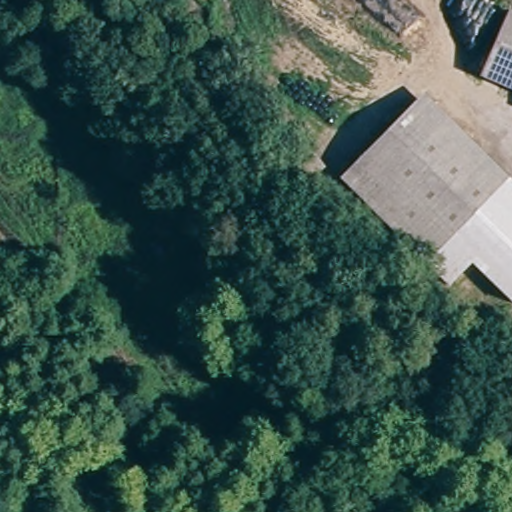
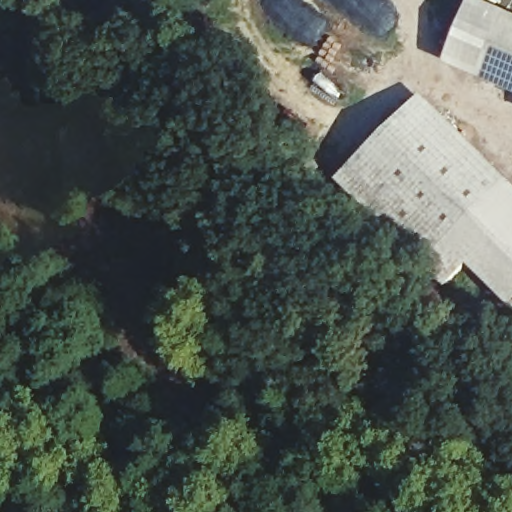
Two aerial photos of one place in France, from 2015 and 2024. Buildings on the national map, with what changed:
new [(447,62),(473,0),(487,0),(508,9),(483,70),(480,77),(447,62)]
unchanged [(509,6),(512,7),(512,82),(483,70),(509,6)]
unchanged [(478,83),(483,70),(512,82),(512,97),(478,83)]
unchanged [(423,91),(512,173),(512,180),(503,191),(410,105),(423,91)]
unchanged [(358,163),(410,105),(503,191),(456,242),(440,260),(347,175),(358,163)]
unchanged [(470,265),(457,277),(440,260),(456,242),(503,191),(512,180),(512,307),(470,265)]

